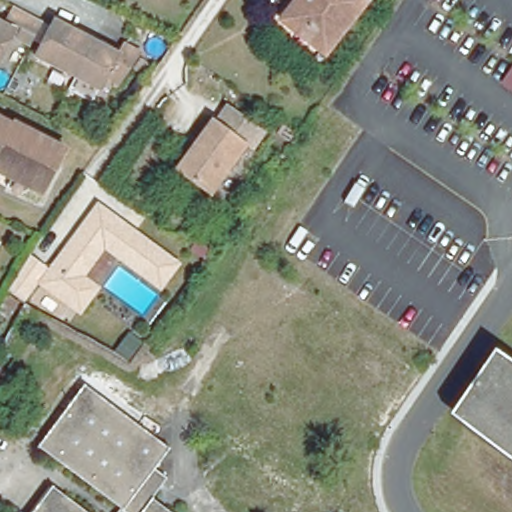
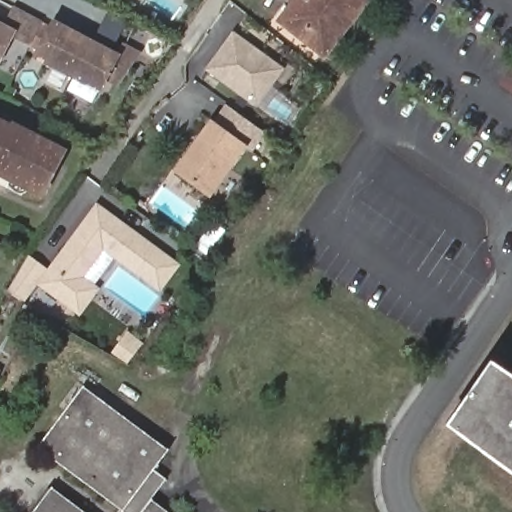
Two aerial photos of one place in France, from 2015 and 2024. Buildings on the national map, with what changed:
unchanged [(299,0),(365,0),(324,53),(302,37),(281,22),(288,14),(299,0)]
unchanged [(42,28),(30,51),(16,44),(21,35),(6,27),(13,12),(42,28)]
unchanged [(53,30),(61,34),(65,36),(66,35),(118,62),(123,53),(138,61),(117,92),(106,86),(100,98),(35,64),(53,30)]
unchanged [(0,65),(0,32),(13,38),(0,65)]
new [(237,32),(285,68),(258,103),(210,68),(237,32)]
unchanged [(500,88),(512,71),(512,95),(500,88)]
unchanged [(210,134),(208,133),(218,119),(249,141),(217,187),(203,177),(201,179),(182,166),(195,148),(197,150),(210,134)]
unchanged [(16,129),(68,156),(44,201),(0,178),(0,124),(14,131),(16,129)]
unchanged [(97,213),(113,225),(177,271),(160,293),(105,253),(83,283),(98,294),(81,317),(59,301),(42,288),(97,213)]
unchanged [(30,263),(46,275),(24,305),(8,293),(30,263)]
unchanged [(449,414),(495,349),(512,362),(512,459),(449,414)]
unchanged [(154,469),(167,480),(151,500),(167,512),(123,512),(125,508),(40,446),(84,387),(168,449),(154,469)]
unchanged [(52,489),(84,512),(35,512),(52,489)]

